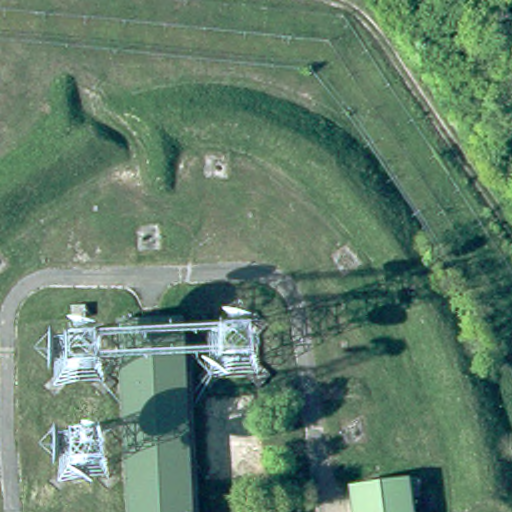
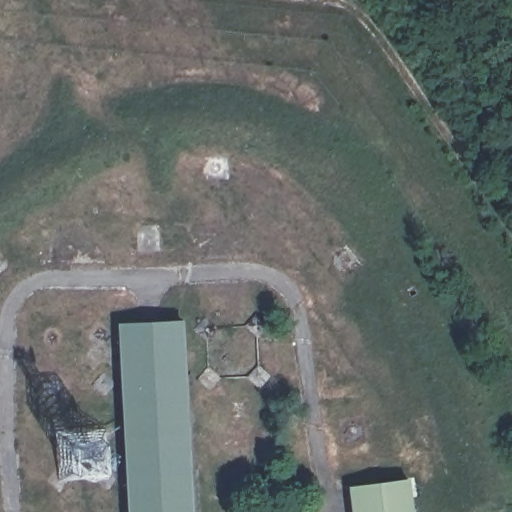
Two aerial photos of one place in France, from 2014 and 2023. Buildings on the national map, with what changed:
unchanged [(122,314),(181,312),(191,512),(128,512),(122,314)]
unchanged [(355,487),(414,478),(416,512),(357,512),(355,487)]
unchanged [(250,509),(286,502),(288,512),(250,512),(250,509)]

